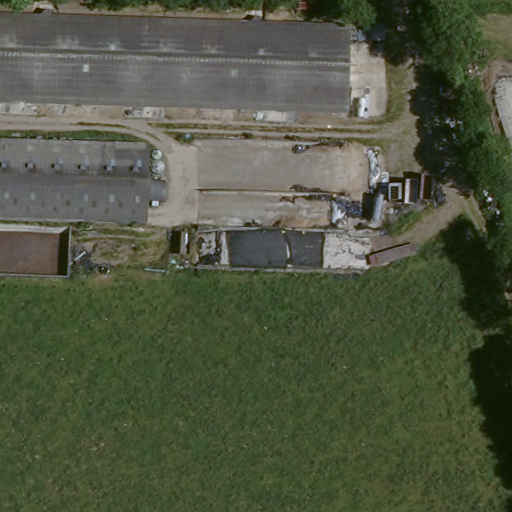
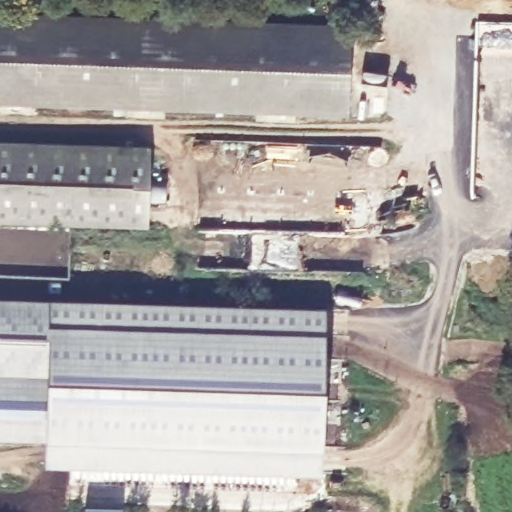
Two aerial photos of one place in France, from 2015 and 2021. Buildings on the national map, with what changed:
unchanged [(347,30),(345,118),(0,108),(0,20),(347,30)]
unchanged [(145,146),(144,225),(0,220),(0,142),(145,146)]
new [(49,302),(326,311),(320,474),(45,466),(46,440),(0,438),(0,300),(49,302)]

